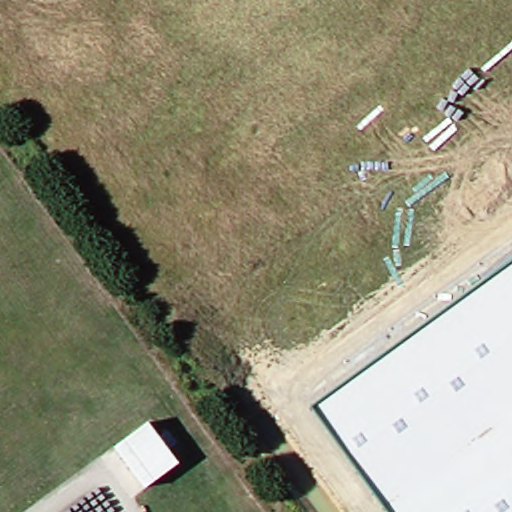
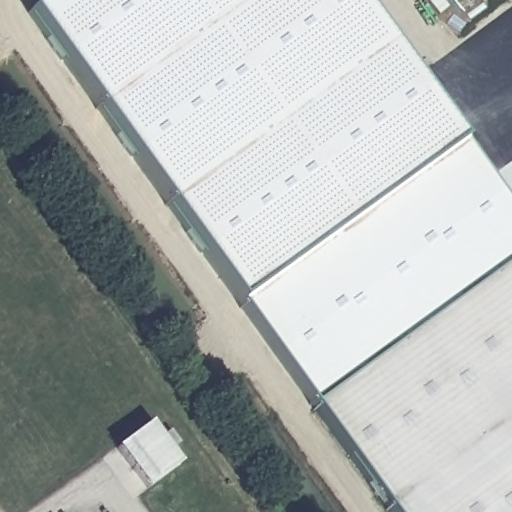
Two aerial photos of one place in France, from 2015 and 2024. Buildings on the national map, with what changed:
new [(29,12),(46,0),(358,0),(461,142),(458,145),(512,217),(512,263),(315,407),(241,303),(29,12)]
new [(315,407),(512,263),(512,512),(391,512),(315,407)]
unchanged [(141,486),(112,447),(144,423),(173,463),(141,486)]

